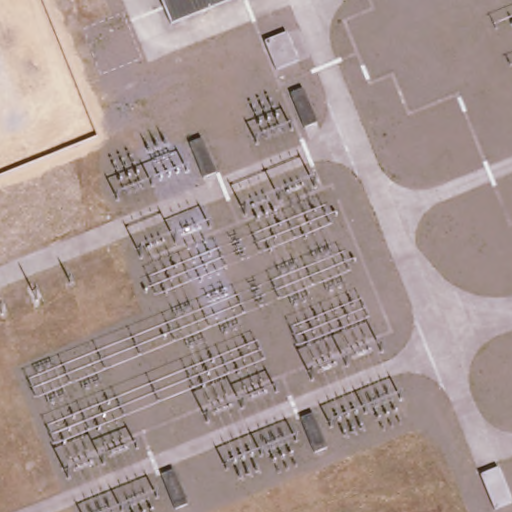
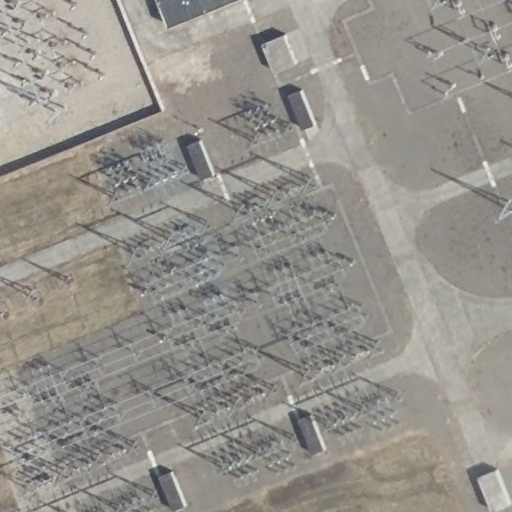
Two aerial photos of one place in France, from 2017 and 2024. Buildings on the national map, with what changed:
unchanged [(220,0),(168,19),(160,0),(220,0)]
unchanged [(262,37),(285,29),(297,61),(273,70),(262,37)]
unchanged [(502,464),(512,496),(512,504),(490,510),(475,470),(502,464)]

